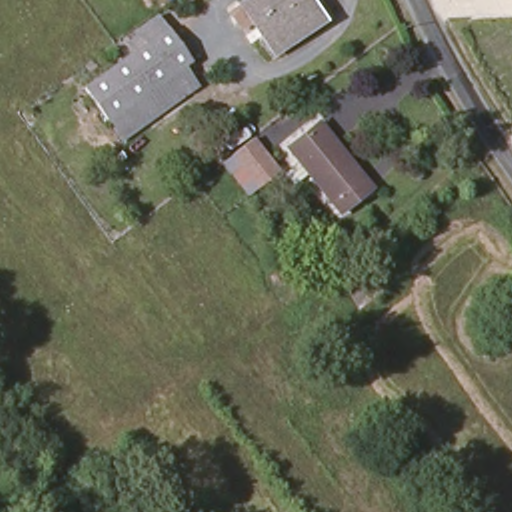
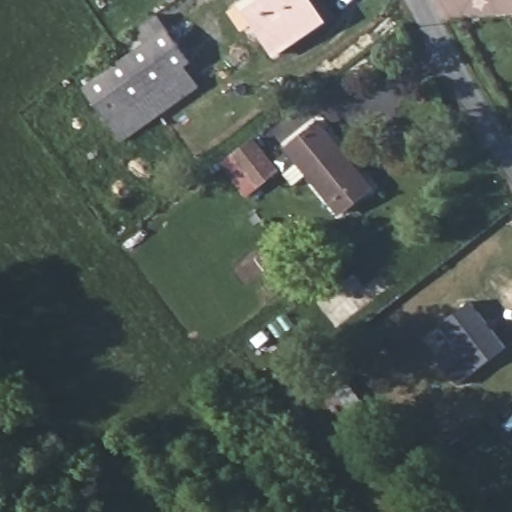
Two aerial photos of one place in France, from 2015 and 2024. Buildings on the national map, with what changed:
unchanged [(306,0),(323,23),(283,54),(259,22),(247,31),(236,15),(256,0),(306,0)]
unchanged [(154,9),(168,30),(127,59),(114,39),(154,9)]
unchanged [(168,30),(188,63),(110,119),(86,87),(127,59),(168,30)]
unchanged [(188,63),(206,86),(126,143),(110,119),(188,63)]
unchanged [(369,190),(338,215),(288,152),(320,126),(369,190)]
unchanged [(250,143),(272,176),(252,192),(229,160),(250,143)]
demolished [(394,291),(365,315),(353,301),(383,278),(394,291)]
new [(459,384),(423,339),(470,303),(506,349),(459,384)]

